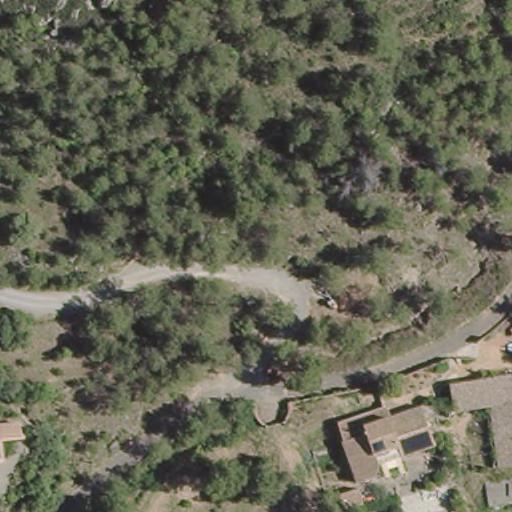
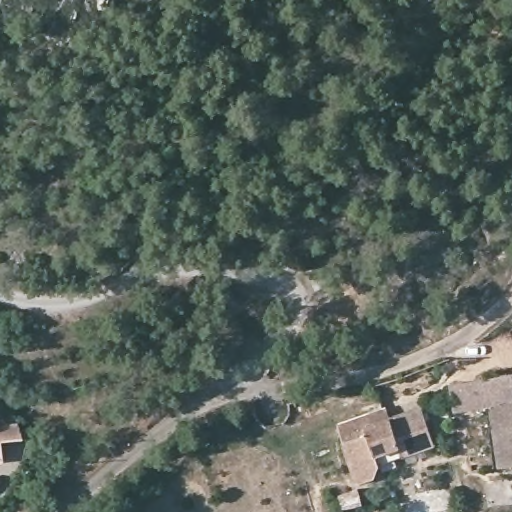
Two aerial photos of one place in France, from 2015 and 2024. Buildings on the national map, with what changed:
unchanged [(494,466),(482,405),(446,412),(442,387),(512,374),(512,463),(494,466)]
unchanged [(375,462),(380,473),(357,482),(339,440),(365,430),(362,423),(387,412),(410,402),(427,442),(375,462)]

